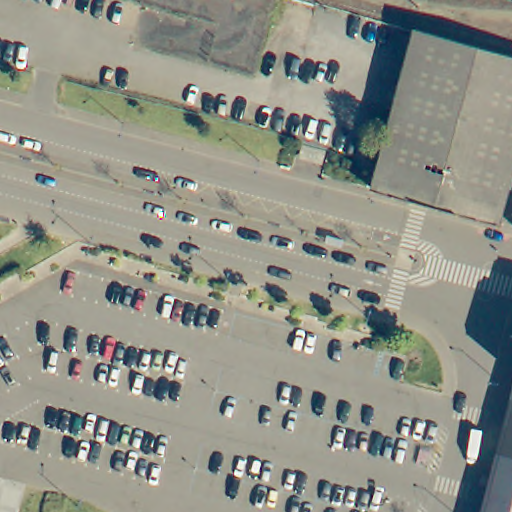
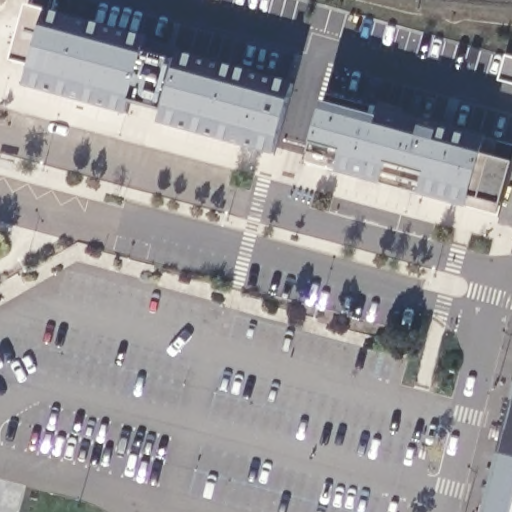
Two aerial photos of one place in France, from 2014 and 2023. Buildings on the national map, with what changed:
new [(53,11),(150,38),(146,52),(175,58),(175,50),(295,82),(275,155),(158,123),(161,113),(131,105),(128,115),(23,86),(29,65),(11,60),(25,5),(35,7),(36,0),(56,0),(53,11)]
demolished [(502,221),(378,187),(420,32),(512,55),(512,185),(502,221)]
new [(497,81),(505,54),(512,56),(512,86),(497,81)]
new [(512,164),(500,207),(499,216),(468,207),(418,194),(424,175),(386,166),(380,184),(335,171),(341,150),(309,143),(318,101),(373,116),(375,106),(421,117),(419,125),(437,130),(440,123),(485,136),(512,144),(512,162),(512,164)]
demolished [(326,160),(307,155),(311,143),(330,149),(326,160)]
unchanged [(509,425),(512,411),(512,426),(509,425)]
unchanged [(512,426),(512,492),(497,488),(507,450),(502,449),(509,425),(512,426)]
unchanged [(510,512),(512,504),(512,512),(510,512)]

